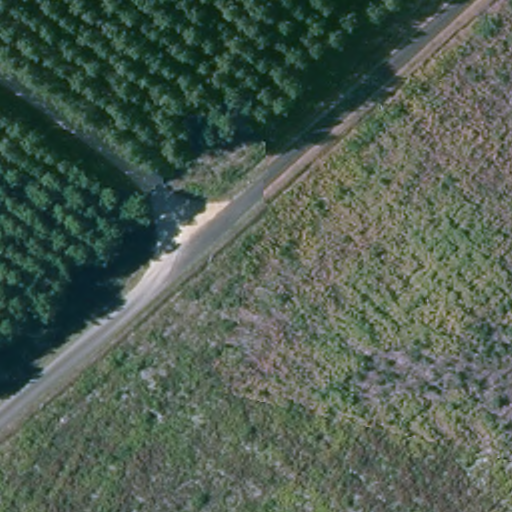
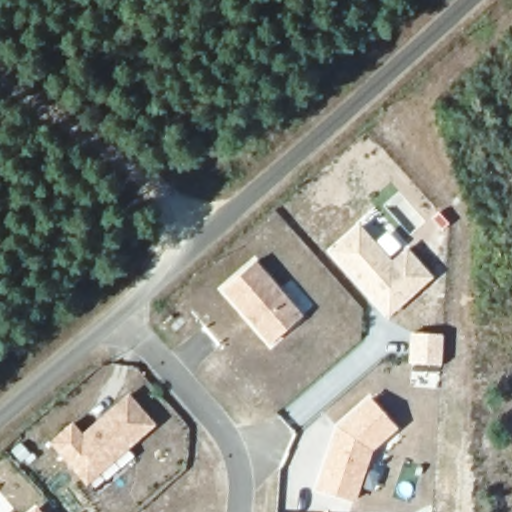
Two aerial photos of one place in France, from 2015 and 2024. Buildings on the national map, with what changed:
new [(433,278),(389,318),(330,252),(360,224),(392,261),(407,247),(433,278)]
new [(256,260),(303,315),(269,345),(224,290),(256,260)]
new [(156,425),(87,487),(49,442),(72,421),(82,432),(129,393),(156,425)]
new [(337,427),(370,399),(395,428),(372,451),(355,501),(317,489),(337,427)]
new [(40,512),(28,512),(35,506),(40,512)]

